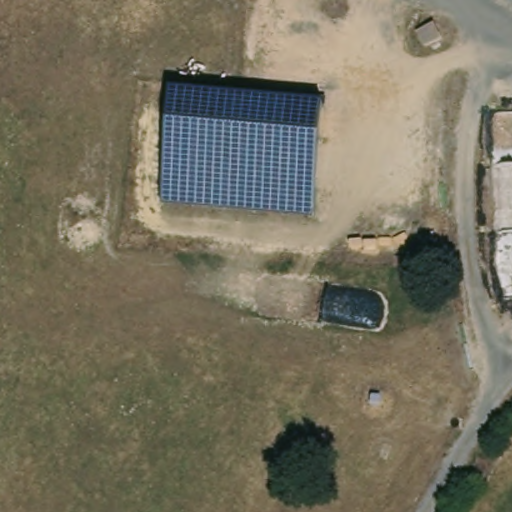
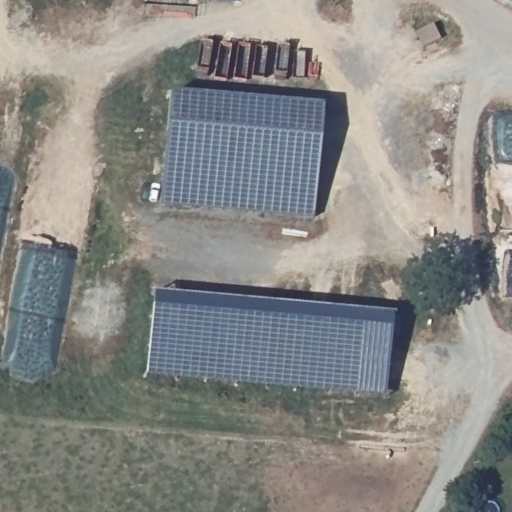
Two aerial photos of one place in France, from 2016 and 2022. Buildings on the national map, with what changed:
unchanged [(508,0),(512,0),(512,3),(508,0)]
unchanged [(171,91),(325,105),(315,217),(163,204),(171,91)]
new [(394,315),(387,395),(147,373),(153,292),(394,315)]

